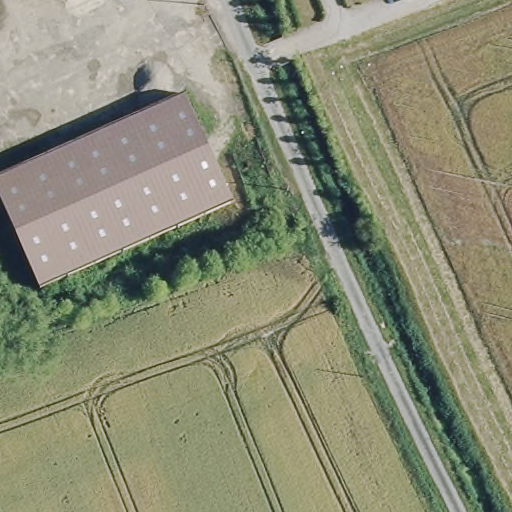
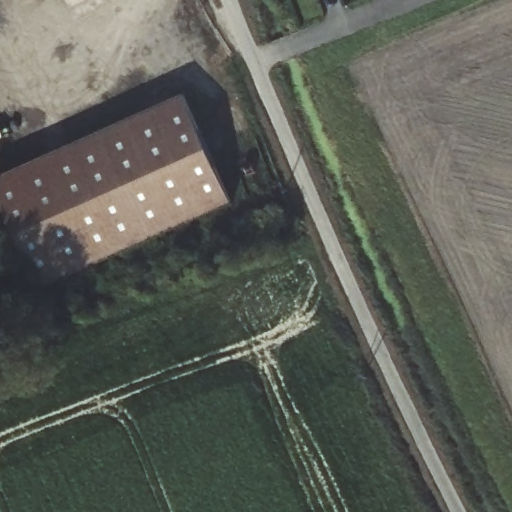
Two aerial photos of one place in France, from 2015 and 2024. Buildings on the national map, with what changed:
unchanged [(181,97),(231,206),(208,215),(160,106),(181,97)]
unchanged [(40,289),(0,199),(0,177),(160,106),(208,215),(40,289)]

